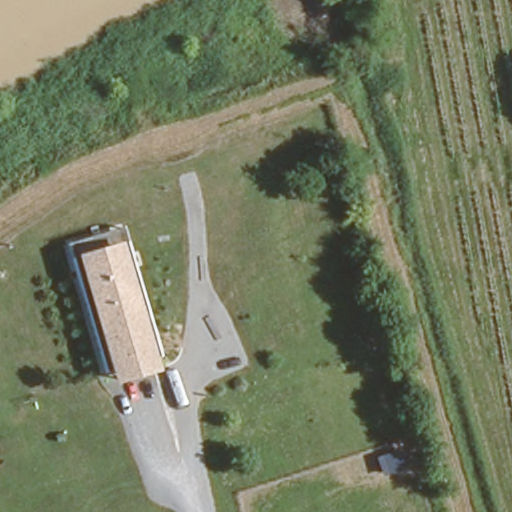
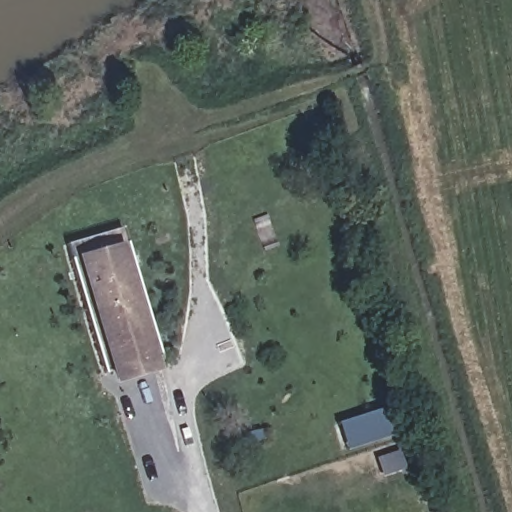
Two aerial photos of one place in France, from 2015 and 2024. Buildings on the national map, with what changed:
unchanged [(75,282),(71,266),(71,261),(130,237),(135,263),(75,282)]
unchanged [(99,373),(75,282),(135,263),(154,357),(99,373)]
new [(347,451),(338,423),(379,409),(388,437),(347,451)]

